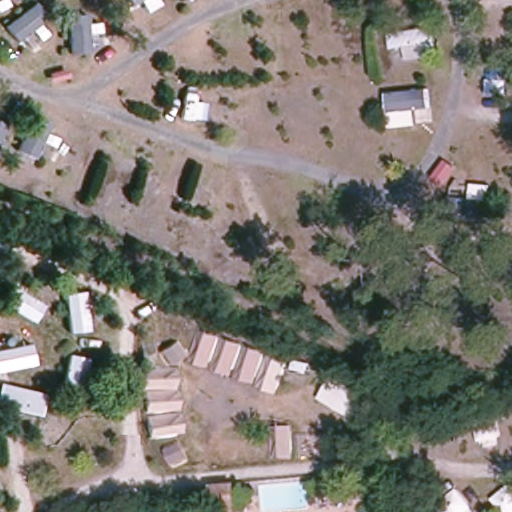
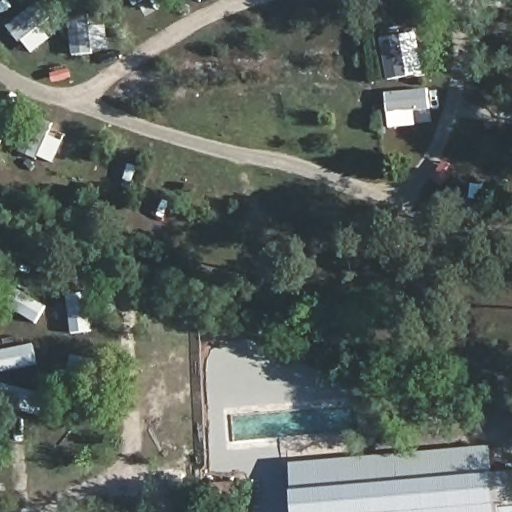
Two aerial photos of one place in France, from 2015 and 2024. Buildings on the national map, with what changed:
unchanged [(393,64),(388,32),(430,21),(439,55),(393,64)]
unchanged [(435,123),(387,127),(383,91),(431,90),(435,123)]
demolished [(51,310),(47,315),(30,314),(29,297),(33,295),(35,283),(61,282),(61,308),(51,310)]
demolished [(89,373),(91,377),(74,388),(65,375),(67,373),(60,362),(83,346),(97,369),(89,373)]
demolished [(62,447),(61,444),(49,450),(37,427),(57,416),(64,425),(69,422),(79,438),(62,447)]
new [(491,448),(498,512),(295,512),(292,463),(491,448)]
unchanged [(252,512),(204,512),(201,490),(249,485),(252,512)]

